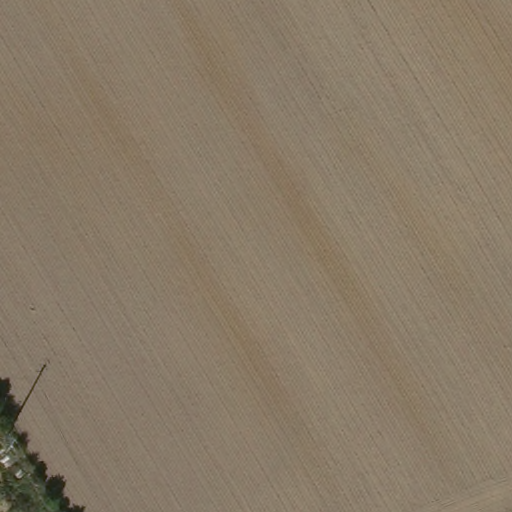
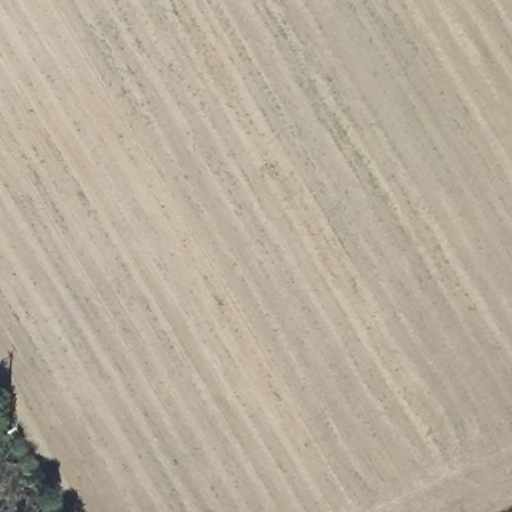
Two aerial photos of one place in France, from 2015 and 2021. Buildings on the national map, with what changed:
[]

